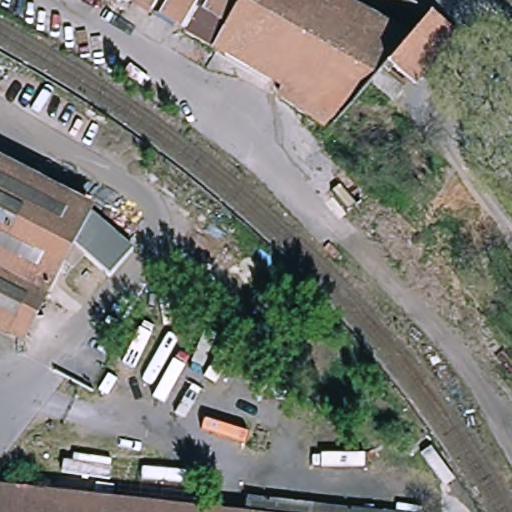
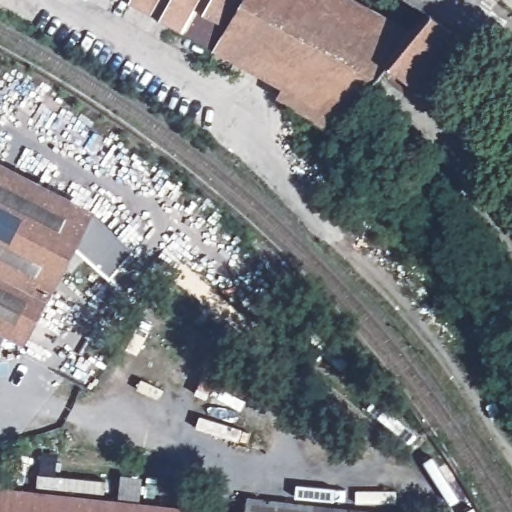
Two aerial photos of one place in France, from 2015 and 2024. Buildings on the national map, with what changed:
unchanged [(368,80),(325,135),(318,129),(323,122),(278,90),(280,85),(269,79),(263,88),(226,59),(230,51),(139,0),(351,0),(408,33),(385,61),(377,70),(400,88),(390,100),(368,80)]
unchanged [(426,10),(455,32),(413,84),(385,61),(408,33),(426,10)]
unchanged [(90,209),(132,248),(107,274),(83,252),(69,267),(62,260),(22,338),(0,327),(0,159),(92,205),(90,209)]
unchanged [(0,486),(171,504),(225,510),(242,512),(0,512),(0,486)]

